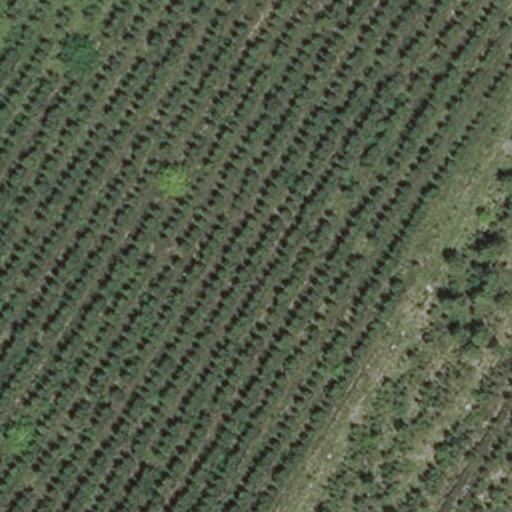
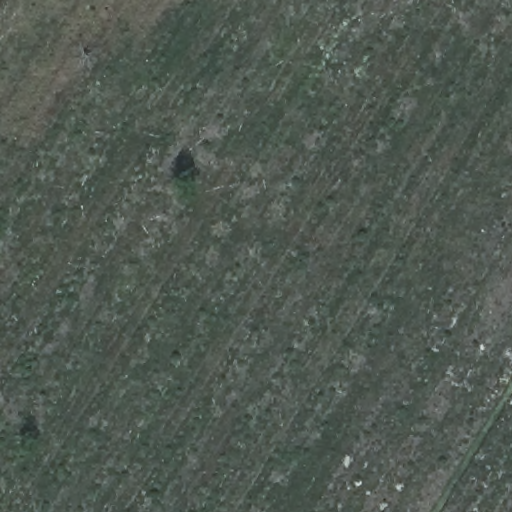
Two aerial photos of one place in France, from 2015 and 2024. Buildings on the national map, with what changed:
[]

